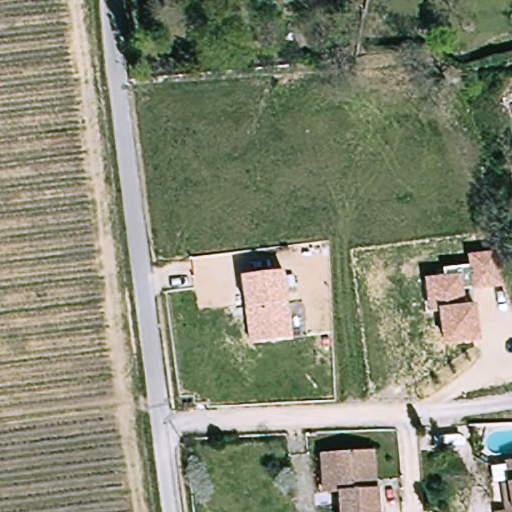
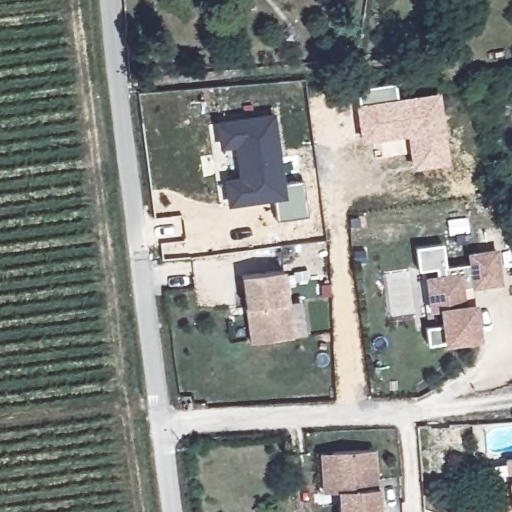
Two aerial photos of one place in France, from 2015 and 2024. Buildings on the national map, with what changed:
new [(360,104),(358,89),(395,85),(397,99),(440,94),(451,165),(413,170),(407,136),(361,143),(355,104),(360,104)]
new [(275,112),(285,183),(303,180),(308,215),(276,220),(274,200),(227,206),(223,179),(239,176),(235,146),(219,149),(216,121),(275,112)]
unchanged [(504,286),(464,290),(466,303),(478,303),(482,341),(444,345),(440,311),(429,312),(425,276),(444,274),(443,267),(469,263),(468,253),(501,250),(504,286)]
unchanged [(244,345),(236,278),(276,273),(285,340),(244,345)]
unchanged [(381,485),(382,512),(354,512),(353,488),(337,488),(326,488),(325,450),(335,450),(376,448),(378,485),(381,485)]
unchanged [(512,462),(512,479),(510,462),(512,462)]
unchanged [(512,512),(504,512),(509,511),(506,485),(512,484),(512,512)]

